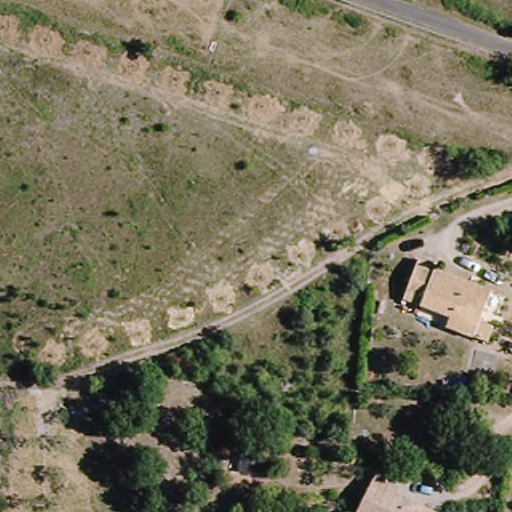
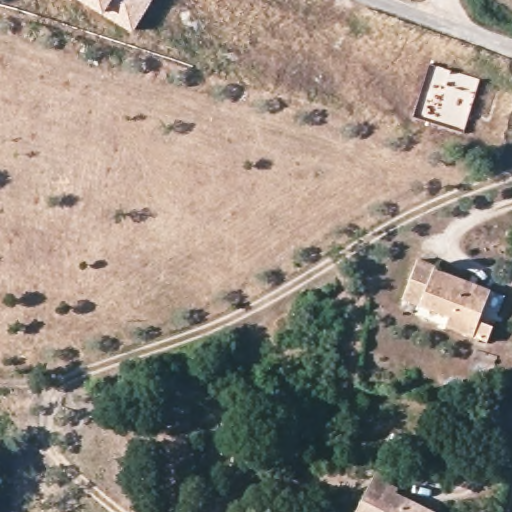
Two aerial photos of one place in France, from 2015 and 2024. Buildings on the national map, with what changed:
new [(133,29),(84,0),(150,0),(133,29)]
new [(487,121),(470,116),(464,133),(412,117),(428,64),(481,80),(498,85),(487,121)]
unchanged [(412,300),(393,293),(409,254),(430,262),(429,266),(484,285),(495,290),(480,335),(465,330),(439,321),(408,310),(412,300)]
unchanged [(374,467),(395,477),(391,489),(437,511),(437,512),(352,512),(355,507),(374,467)]

